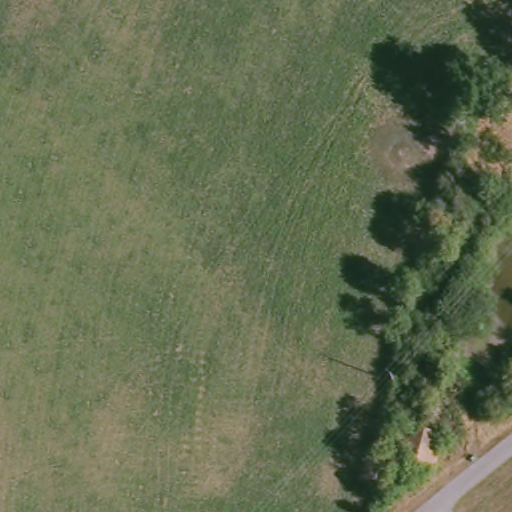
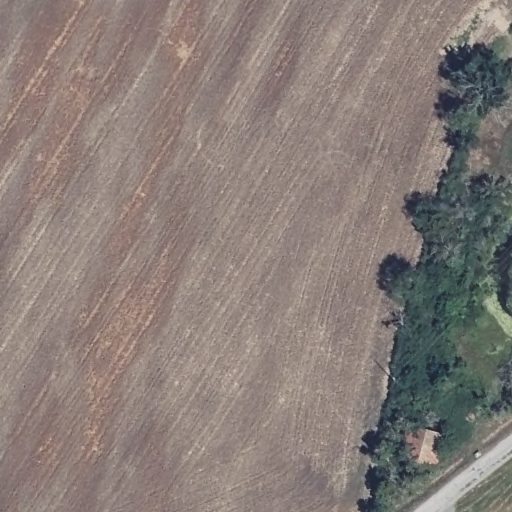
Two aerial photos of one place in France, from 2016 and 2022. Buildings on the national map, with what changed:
unchanged [(440,469),(408,460),(418,427),(450,436),(440,469)]

